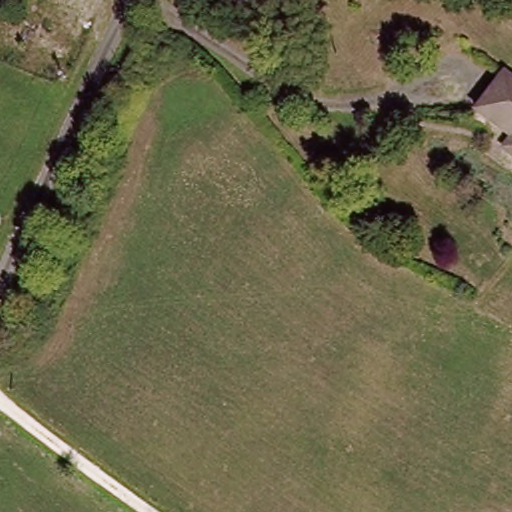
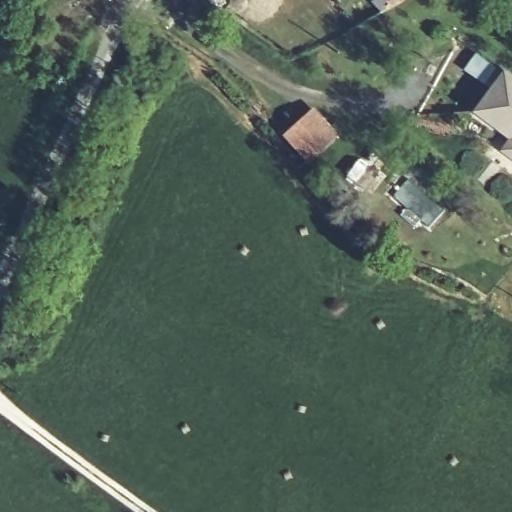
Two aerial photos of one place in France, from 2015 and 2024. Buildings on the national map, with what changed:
unchanged [(503,78),(512,83),(512,131),(482,110),(503,78)]
new [(309,163),(285,134),(317,106),(342,137),(309,163)]
unchanged [(502,147),(512,132),(512,153),(502,147)]

